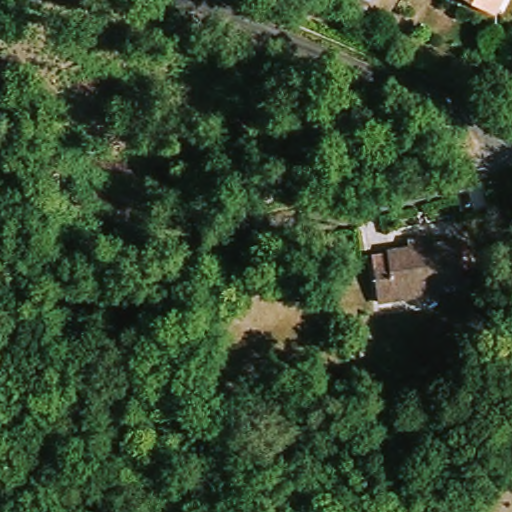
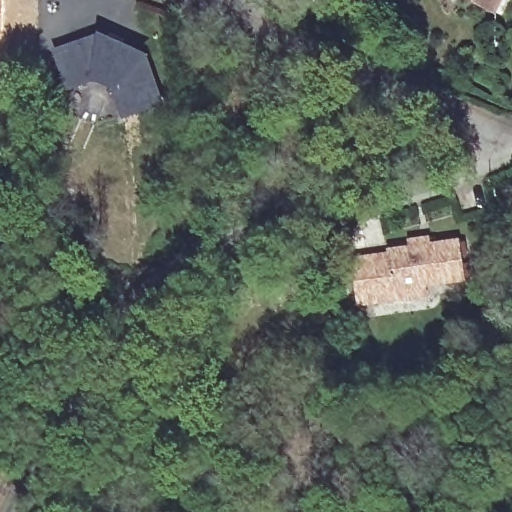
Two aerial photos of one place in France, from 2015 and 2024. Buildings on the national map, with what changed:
new [(1,42),(0,42),(0,0),(2,0),(1,42)]
unchanged [(495,14),(470,0),(503,0),(495,14)]
new [(114,92),(92,83),(67,92),(53,50),(99,33),(150,56),(165,106),(122,118),(114,92)]
unchanged [(380,309),(373,256),(410,251),(409,243),(428,241),(429,249),(459,245),(464,286),(428,290),(429,304),(399,307),(380,309)]

